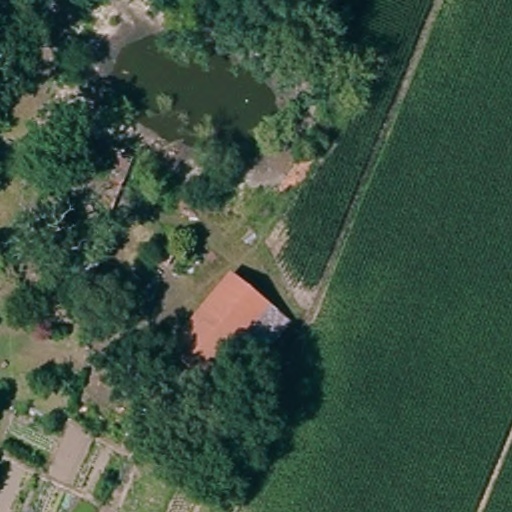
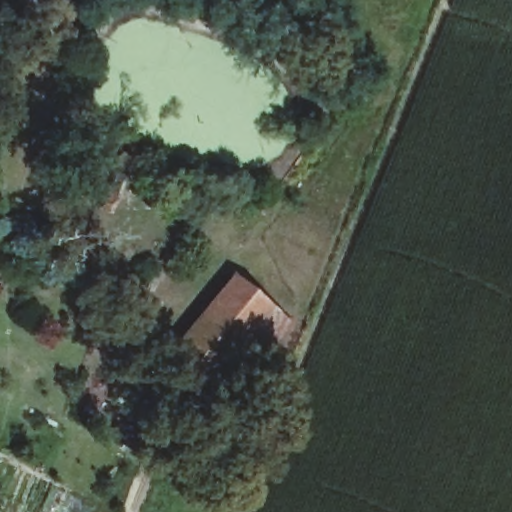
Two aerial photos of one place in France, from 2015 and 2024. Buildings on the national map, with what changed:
unchanged [(272,323),(209,394),(177,368),(239,293),(272,323)]

